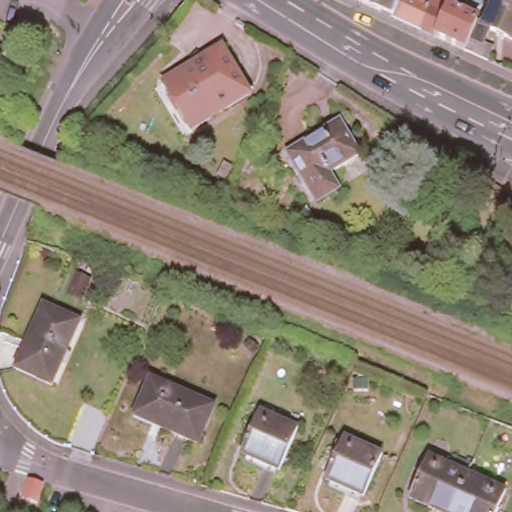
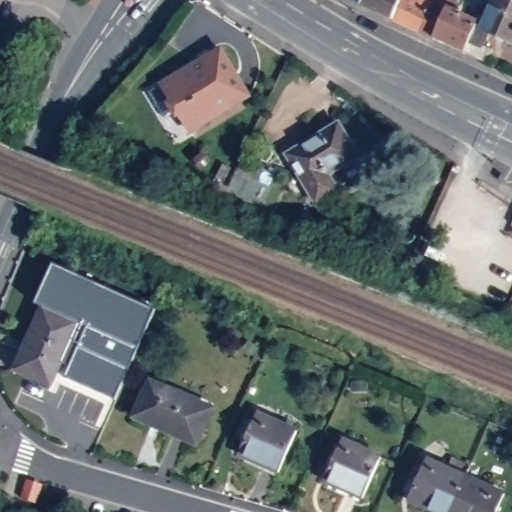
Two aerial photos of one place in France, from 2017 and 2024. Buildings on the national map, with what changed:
unchanged [(341,0),(365,0),(361,9),(341,0)]
unchanged [(361,9),(365,0),(403,0),(393,24),(361,9)]
unchanged [(478,28),(465,56),(435,43),(423,37),(393,24),(403,0),(452,0),(454,1),(449,11),(465,19),(464,21),(478,28)]
unchanged [(495,0),(501,0),(512,4),(512,44),(491,36),(486,49),(494,54),(489,67),(465,56),(478,28),(482,30),(495,0)]
unchanged [(244,90),(186,125),(158,79),(216,45),(223,56),(236,78),(244,90)]
unchanged [(361,155),(332,174),(341,190),(321,202),(291,155),(343,123),(361,155)]
unchanged [(512,220),(512,232),(508,229),(512,220)]
new [(113,399),(65,376),(87,327),(79,323),(82,317),(45,300),(43,307),(34,303),(51,263),(153,309),(113,399)]
unchanged [(82,317),(54,381),(20,366),(31,341),(28,340),(45,300),(82,317)]
unchanged [(212,403),(196,440),(132,413),(148,374),(212,403)]
unchanged [(297,424),(279,465),(244,450),(261,408),(297,424)]
unchanged [(384,453),(366,494),(329,477),(346,436),(384,453)]
unchanged [(408,501),(426,459),(446,469),(450,459),(469,466),(464,477),(448,512),(434,512),(408,501)]
unchanged [(503,494),(495,512),(448,512),(464,477),(503,494)]
unchanged [(26,512),(14,512),(15,509),(26,512)]

